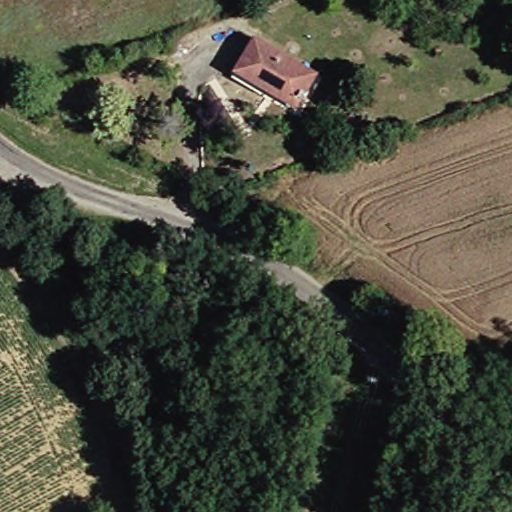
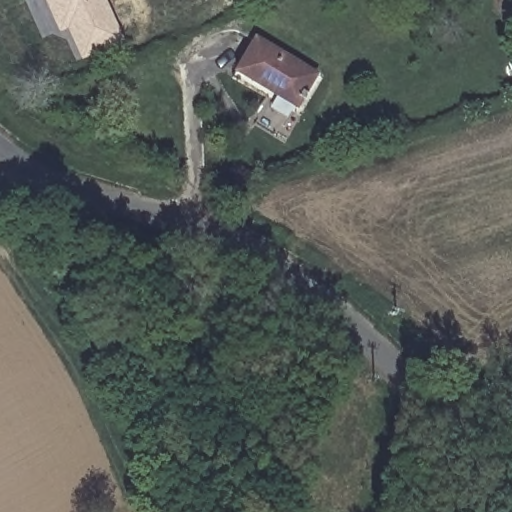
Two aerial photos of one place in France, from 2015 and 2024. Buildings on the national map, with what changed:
new [(47,0),(106,0),(125,41),(83,60),(66,28),(61,29),(47,0)]
unchanged [(266,86),(258,97),(231,79),(261,32),(327,73),(302,108),(266,86)]

